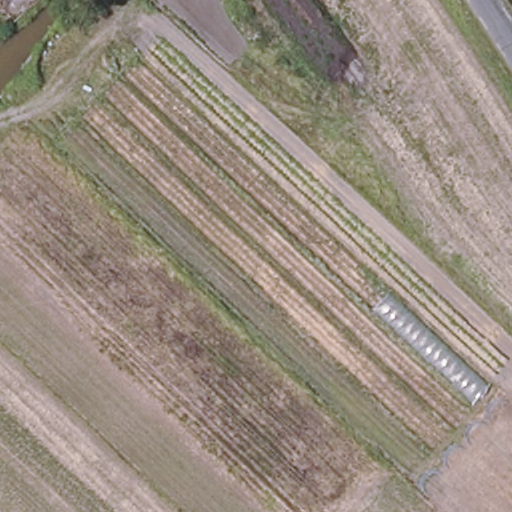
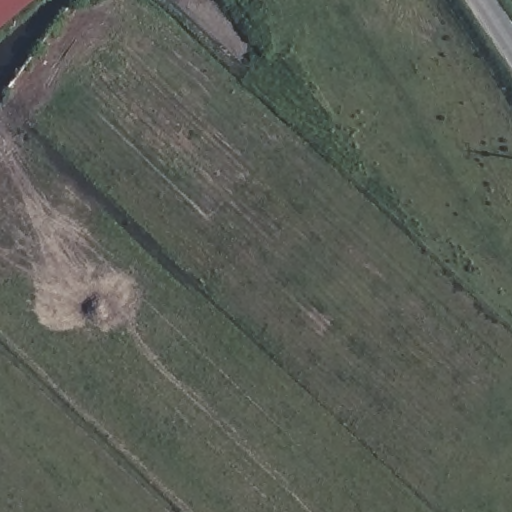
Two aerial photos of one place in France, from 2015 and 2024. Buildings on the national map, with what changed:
new [(0,29),(0,0),(34,0),(0,29)]

